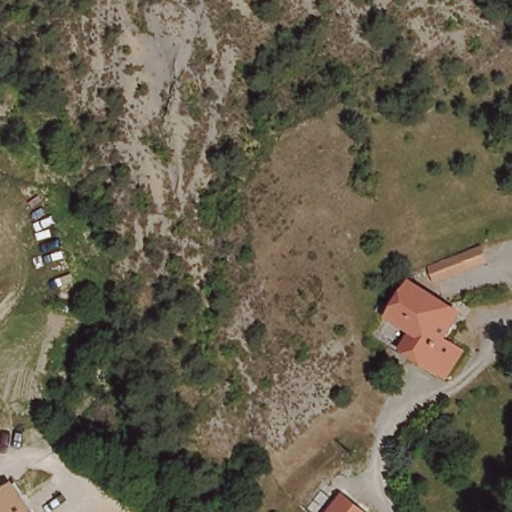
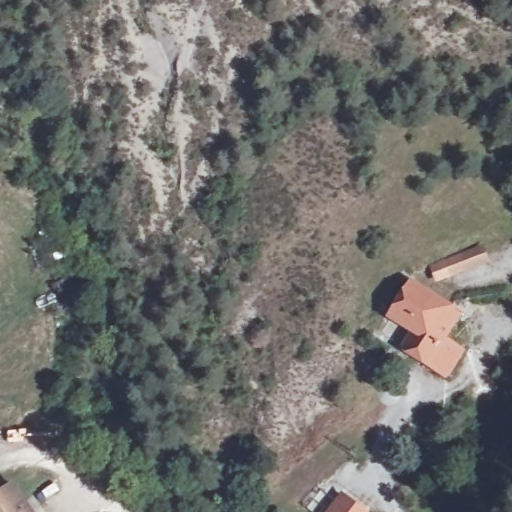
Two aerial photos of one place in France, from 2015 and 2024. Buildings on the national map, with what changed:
unchanged [(452,377),(412,355),(425,337),(385,318),(405,282),(470,318),(452,340),(470,351),(452,377)]
unchanged [(0,495),(14,486),(31,512),(0,512),(0,495)]
unchanged [(340,498),(357,512),(331,512),(340,498)]

